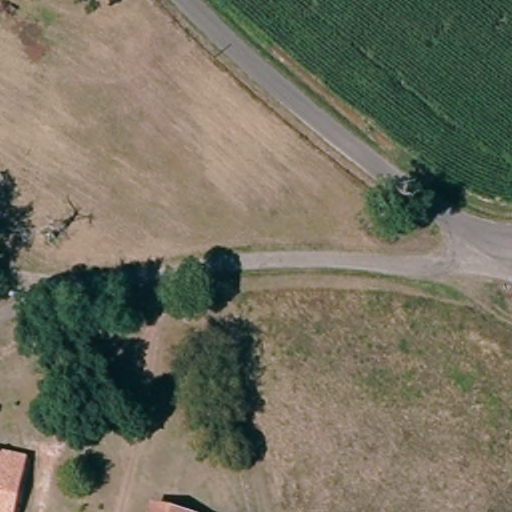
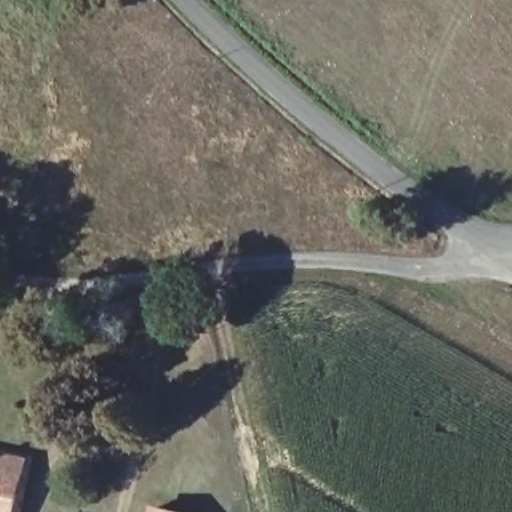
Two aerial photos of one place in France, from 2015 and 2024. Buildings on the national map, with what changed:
unchanged [(0,451),(31,458),(20,512),(0,512),(0,451)]
unchanged [(164,510),(174,512),(163,512),(164,510)]

